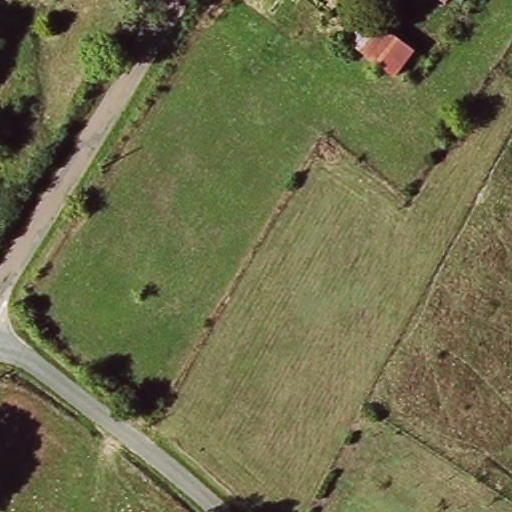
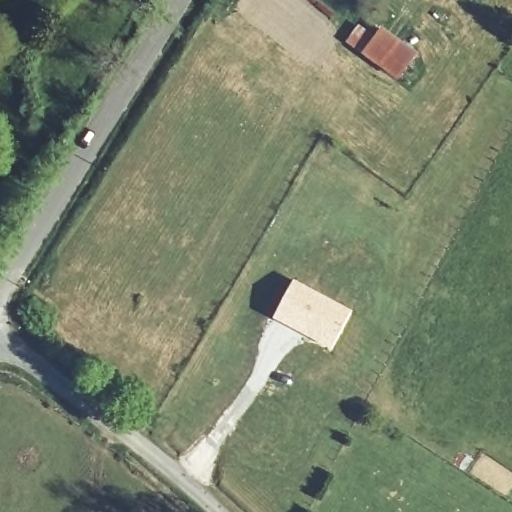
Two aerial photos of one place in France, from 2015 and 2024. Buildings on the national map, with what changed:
unchanged [(360,54),(381,27),(418,54),(400,82),(360,54)]
new [(293,279),(353,310),(331,350),(271,319),(293,279)]

